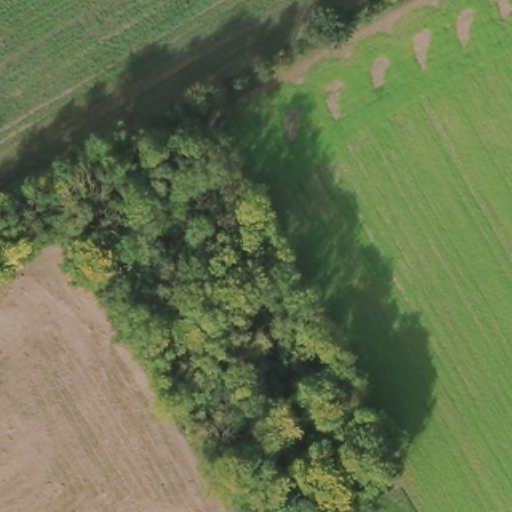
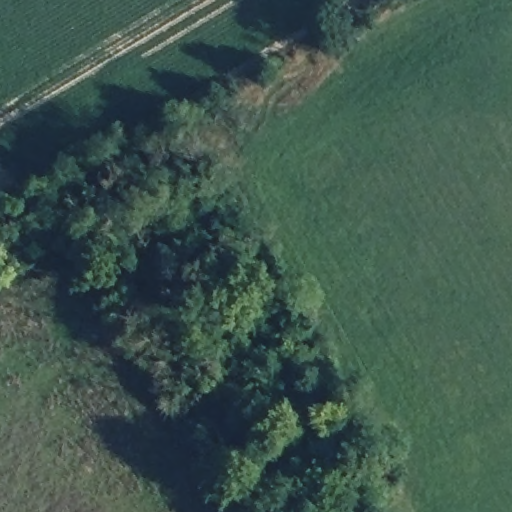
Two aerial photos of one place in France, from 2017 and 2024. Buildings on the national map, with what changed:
unchanged [(261,435),(266,452),(246,457),(242,441),(261,435)]

